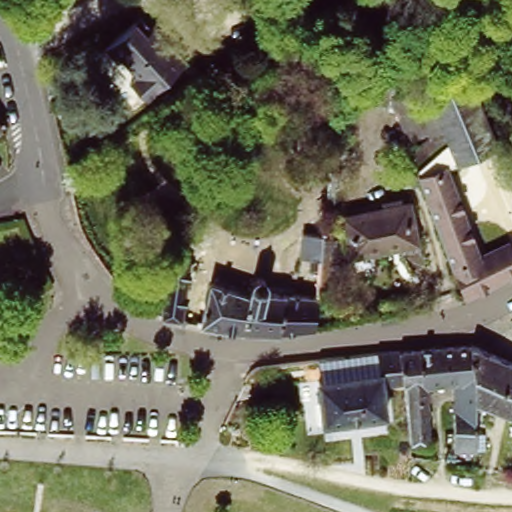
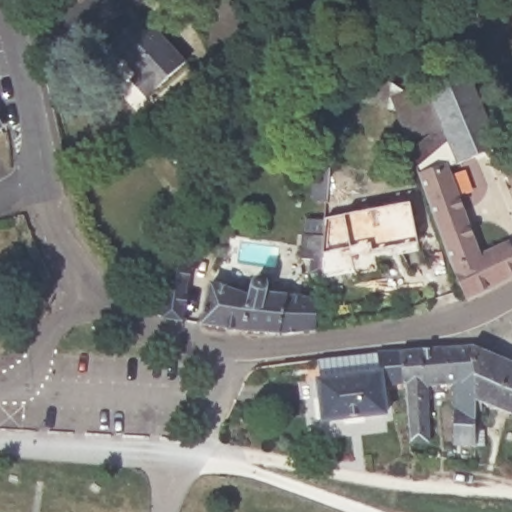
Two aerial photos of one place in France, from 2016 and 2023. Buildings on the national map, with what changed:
unchanged [(142,16),(153,27),(186,63),(147,99),(131,83),(138,76),(122,59),(120,61),(107,47),(135,22),(142,16)]
unchanged [(480,254),(510,242),(512,246),(512,276),(512,277),(490,287),(467,298),(455,268),(418,166),(395,110),(332,91),(344,59),(403,89),(424,82),(464,65),(497,145),(448,167),(480,254)]
unchanged [(505,172),(512,168),(512,189),(505,172)]
unchanged [(414,244),(347,253),(339,216),(405,202),(414,244)]
unchanged [(312,260),(302,258),(305,234),(326,237),(323,273),(310,272),(312,260)]
unchanged [(279,328),(260,327),(230,325),(199,322),(207,281),(245,290),(249,277),(250,275),(252,272),(255,272),(259,272),(261,273),(262,276),(264,278),(262,286),(315,293),(312,326),(279,328)]
unchanged [(475,401),(476,447),(455,445),(455,406),(456,406),(455,386),(425,388),(433,444),(414,442),(405,387),(400,352),(475,346),(475,401)]
unchanged [(509,412),(475,401),(475,346),(512,361),(512,414),(509,412)]
unchanged [(307,407),(305,387),(320,386),(317,362),(350,357),(385,353),(400,352),(405,387),(384,390),(387,421),(326,428),(323,406),(307,407)]

